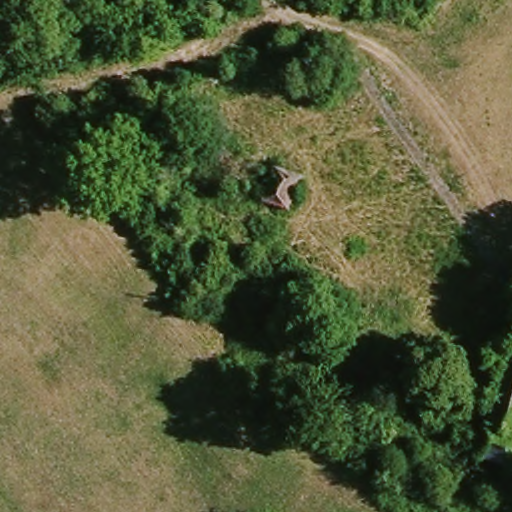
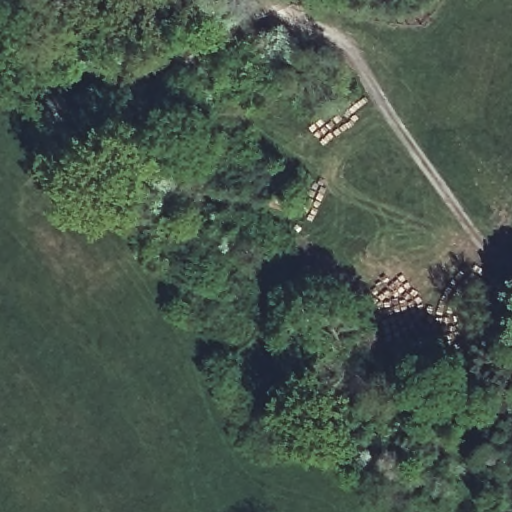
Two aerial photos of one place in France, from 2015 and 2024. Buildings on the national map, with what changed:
unchanged [(242,191),(217,180),(220,170),(174,144),(185,115),(256,150),(242,191)]
unchanged [(279,202),(256,195),(268,161),(291,169),(279,202)]
unchanged [(172,214),(206,227),(195,256),(161,241),(172,214)]
unchanged [(287,341),(360,330),(363,345),(351,345),(352,368),(281,377),(278,361),(289,360),(287,341)]
unchanged [(512,431),(512,466),(474,455),(498,350),(512,353),(512,415),(509,430),(512,431)]

